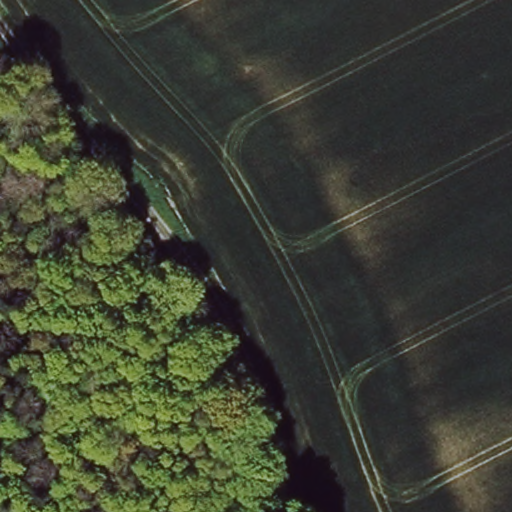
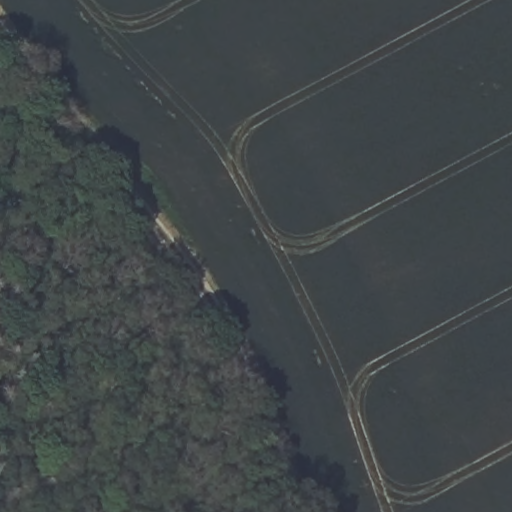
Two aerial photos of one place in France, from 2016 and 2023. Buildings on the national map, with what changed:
[]

